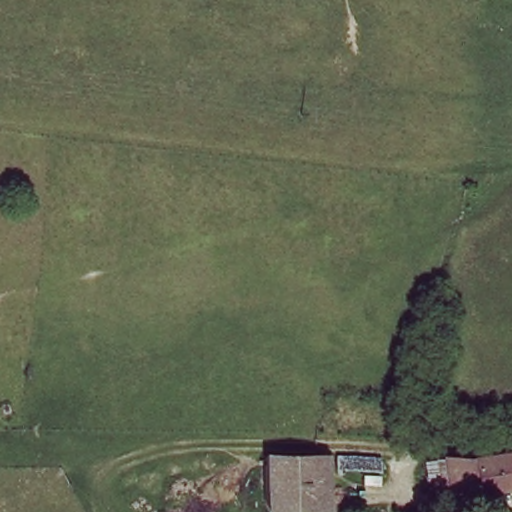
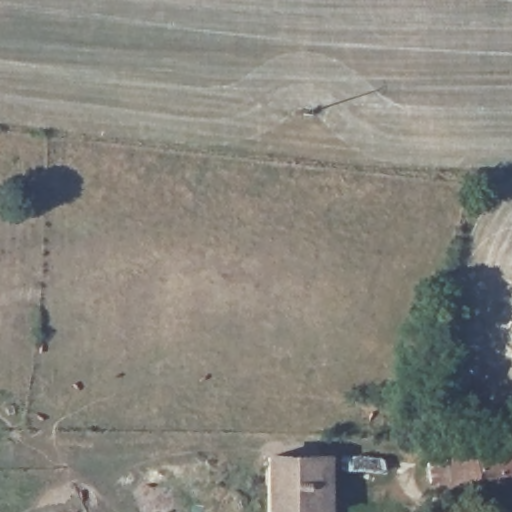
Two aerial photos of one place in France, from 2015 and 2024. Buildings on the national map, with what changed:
unchanged [(455,496),(451,457),(512,449),(512,491),(455,496)]
unchanged [(331,453),(331,512),(265,512),(265,453),(331,453)]

